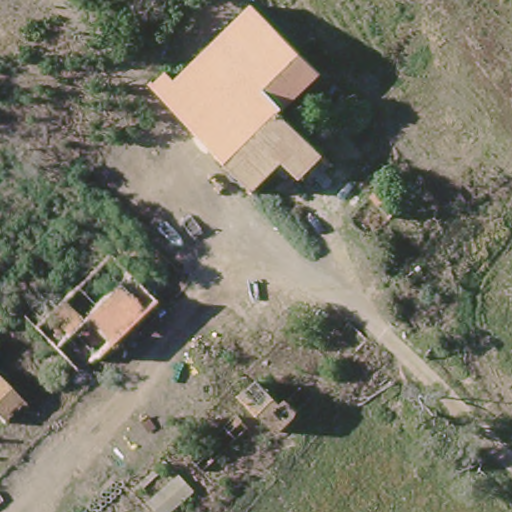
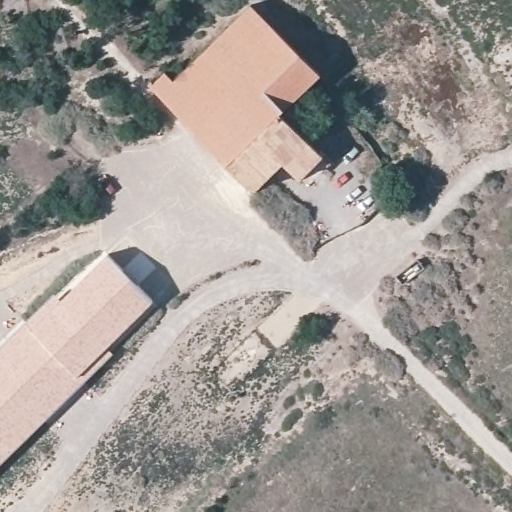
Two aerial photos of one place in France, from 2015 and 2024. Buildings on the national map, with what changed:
unchanged [(280,114),(322,156),(300,179),(284,162),(253,191),(151,86),(164,73),(172,81),(250,4),(250,5),(320,76),(280,114)]
unchanged [(399,209),(389,219),(369,198),(379,188),(399,209)]
new [(115,354),(0,466),(0,349),(55,295),(62,301),(109,255),(153,302),(109,347),(115,354)]

